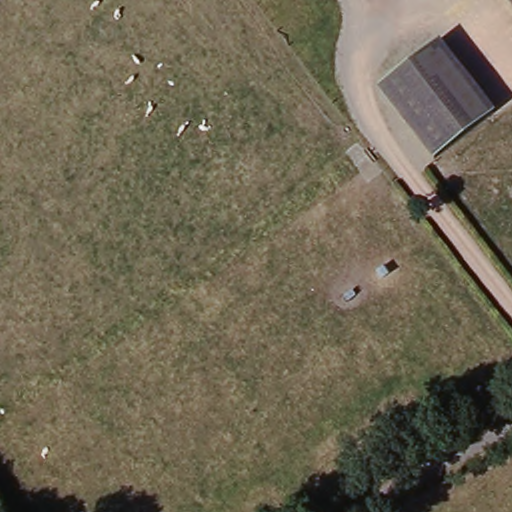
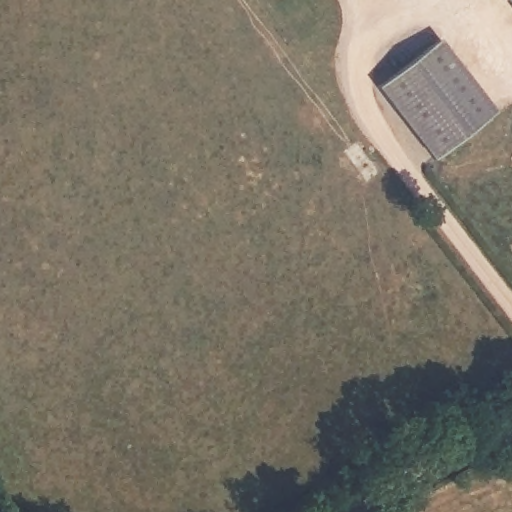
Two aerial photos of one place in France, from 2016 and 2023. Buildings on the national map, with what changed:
unchanged [(512,0),(512,8),(506,0),(512,0)]
unchanged [(375,92),(434,46),(490,118),(431,164),(375,92)]

